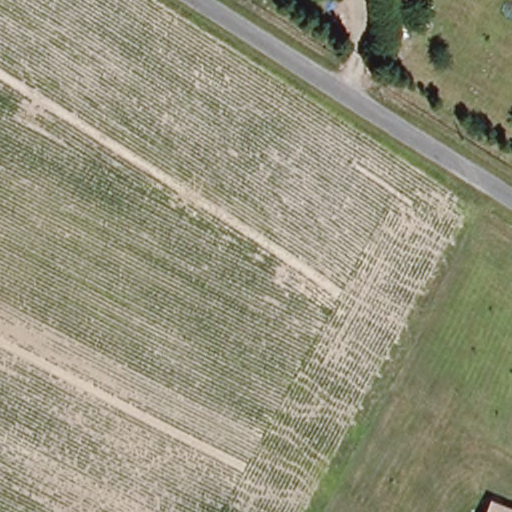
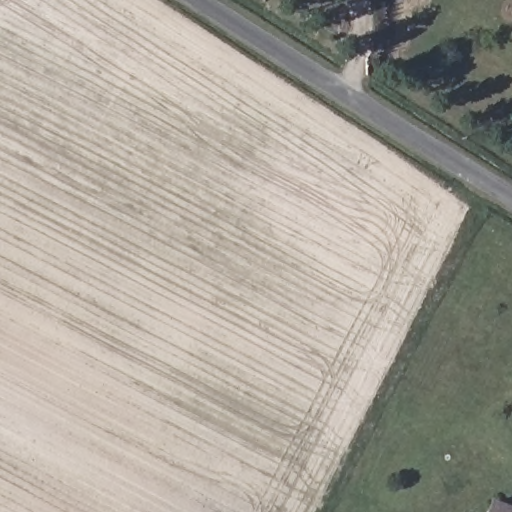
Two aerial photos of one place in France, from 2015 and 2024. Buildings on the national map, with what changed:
unchanged [(512,505),(512,512),(493,512),(501,500),(512,505)]

